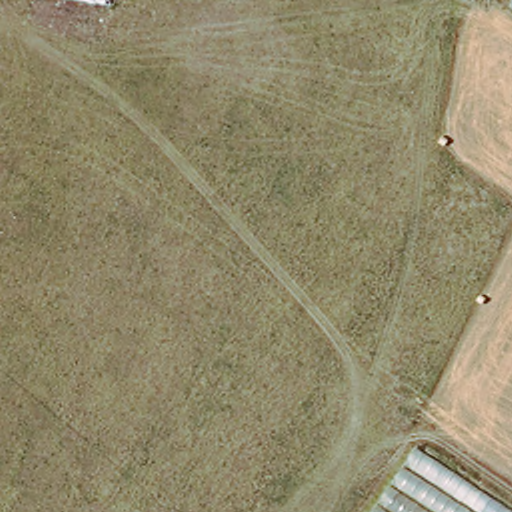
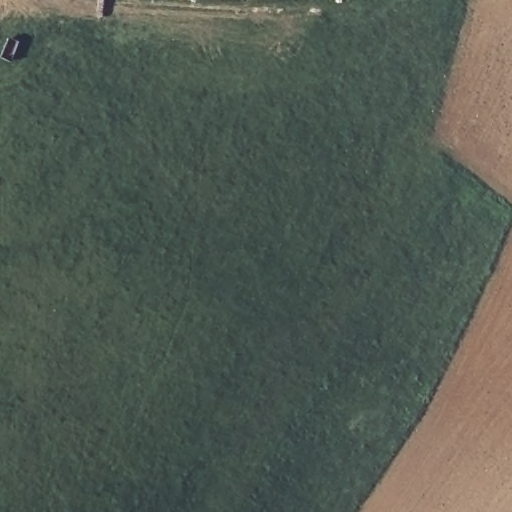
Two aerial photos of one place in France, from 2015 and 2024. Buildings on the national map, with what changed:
demolished [(512,510),(512,512),(374,512),(416,448),(512,510)]

